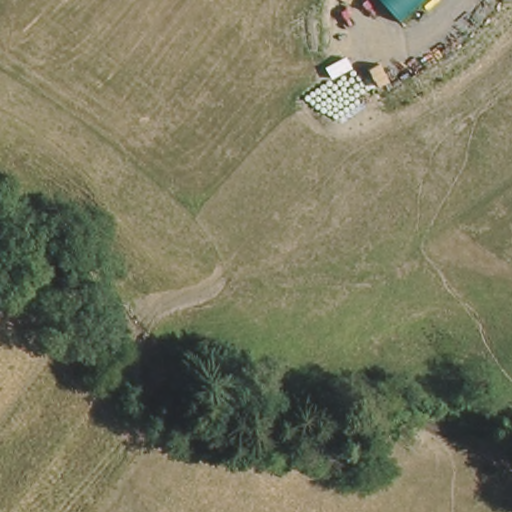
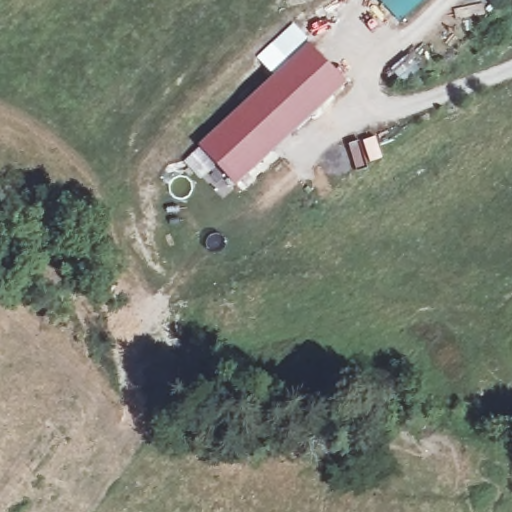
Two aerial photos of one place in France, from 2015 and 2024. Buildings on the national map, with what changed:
unchanged [(399,23),(378,0),(424,0),(399,23)]
new [(307,36),(346,77),(236,180),(231,175),(268,140),(236,105),(198,140),(197,139),(307,36)]
new [(236,105),(268,140),(231,175),(198,140),(236,105)]

